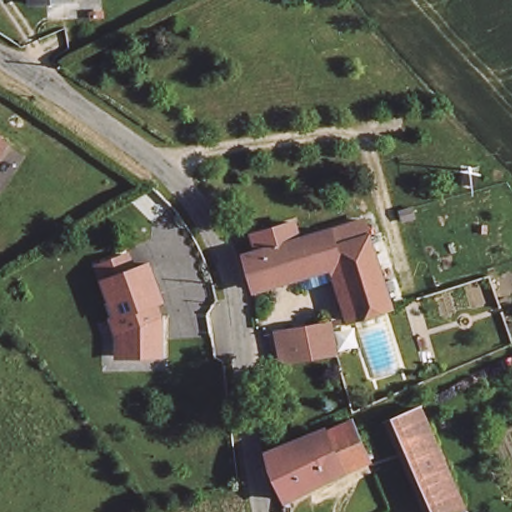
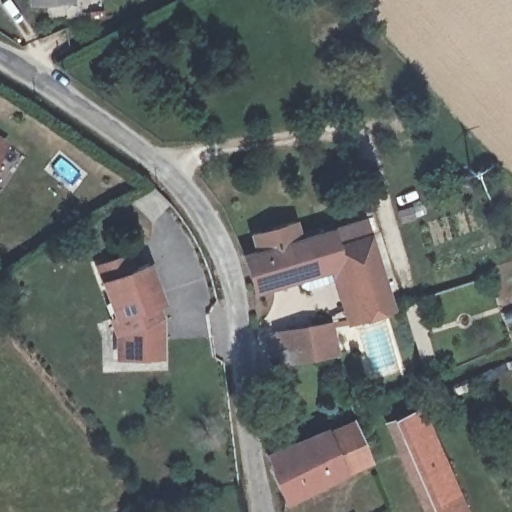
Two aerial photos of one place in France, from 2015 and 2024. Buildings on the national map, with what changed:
unchanged [(2,142),(0,144),(0,141),(2,142)]
unchanged [(348,324),(342,311),(352,307),(336,263),(250,290),(243,258),(326,232),(363,220),(370,239),(391,307),(348,324)]
unchanged [(98,263),(128,254),(133,268),(148,263),(161,300),(154,302),(160,315),(160,355),(122,356),(122,330),(98,263)]
unchanged [(291,323),(335,317),(339,355),(298,361),(291,323)]
unchanged [(420,396),(476,505),(465,512),(425,512),(394,451),(377,416),(420,396)]
unchanged [(262,451),(353,413),(372,462),(284,504),(262,451)]

